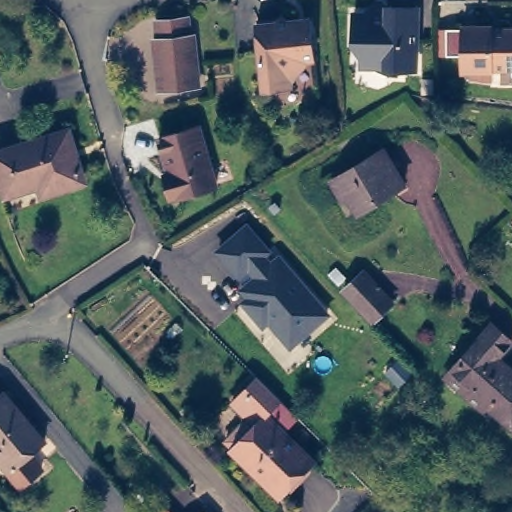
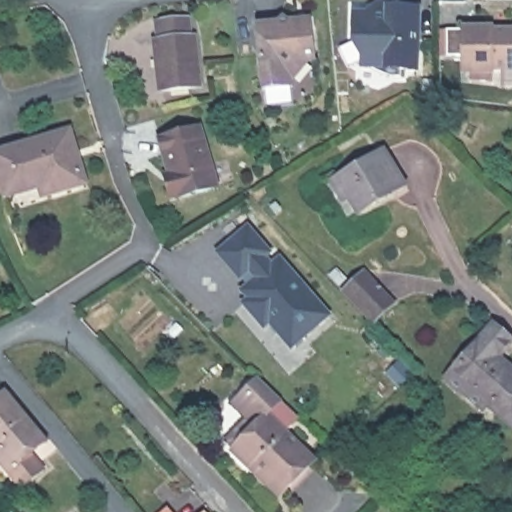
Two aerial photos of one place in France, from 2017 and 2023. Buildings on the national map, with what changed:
unchanged [(388,5),(388,0),(418,0),(416,61),(401,60),(401,67),(400,67),(399,67),(398,67),(397,67),(396,67),(395,67),(394,67),(394,66),(393,66),(392,66),(391,66),(390,66),(389,66),(389,65),(388,65),(387,65),(386,65),(385,64),(384,64),(383,64),(383,63),(382,63),(381,63),(381,62),(380,62),(379,62),(378,62),(378,61),(377,61),(376,61),(376,60),(375,60),(374,60),(374,59),(373,59),(372,58),(371,58),(371,57),(370,57),(369,57),(362,57),(363,32),(354,32),(354,4),(388,5)]
unchanged [(194,77),(155,82),(149,31),(153,31),(151,12),(183,9),(186,27),(189,27),(194,77)]
unchanged [(253,21),(272,19),(278,12),(294,26),(306,25),(309,56),(301,57),(287,75),(288,82),(259,86),(253,21)]
unchanged [(512,60),(487,60),(487,62),(487,73),(466,71),(466,62),(459,62),(459,19),(486,18),(487,21),(512,20),(512,60)]
unchanged [(159,134),(199,122),(217,182),(177,194),(159,134)]
unchanged [(84,178),(50,188),(48,179),(7,191),(0,168),(0,149),(68,127),(84,178)]
unchanged [(331,180),(336,176),(339,174),(383,149),(403,182),(369,202),(358,210),(349,196),(342,199),(331,180)]
unchanged [(291,351),(269,323),(264,329),(241,304),(246,298),(238,291),(245,284),(215,251),(244,224),(276,258),(281,254),(329,315),(291,351)]
unchanged [(373,318),(358,303),(342,287),(361,270),(376,286),(391,302),(373,318)]
unchanged [(512,369),(512,429),(487,406),(489,403),(464,381),(452,371),(493,326),(504,336),(512,343),(499,356),(512,369)]
unchanged [(262,407),(246,423),(228,405),(256,376),(299,417),(286,431),(262,407)]
unchanged [(6,392),(46,440),(31,452),(44,467),(23,486),(0,459),(0,397),(6,392)]
unchanged [(286,431),(310,453),(279,486),(252,459),(249,462),(228,442),(246,423),(262,407),(286,431)]
unchanged [(174,512),(157,512),(166,503),(174,512)]
unchanged [(189,512),(198,504),(205,512),(189,512)]

